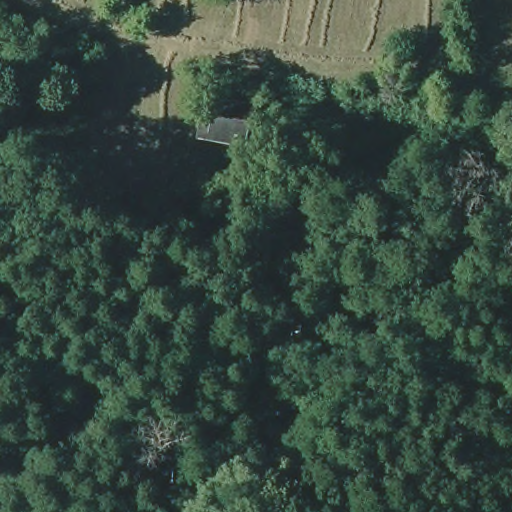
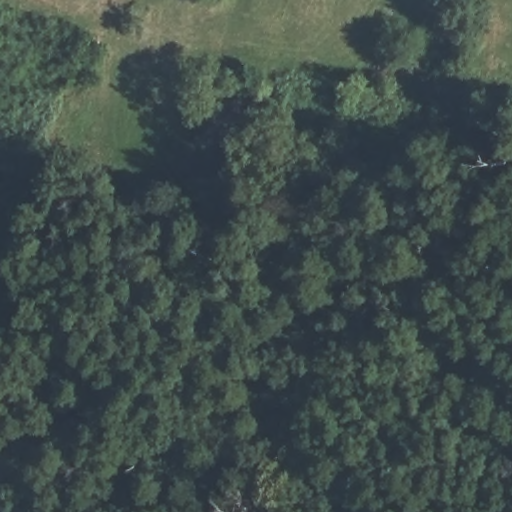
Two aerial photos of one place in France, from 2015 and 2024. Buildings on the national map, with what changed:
unchanged [(204,136),(206,124),(211,125),(216,99),(253,105),(248,137),(247,144),(204,136)]

